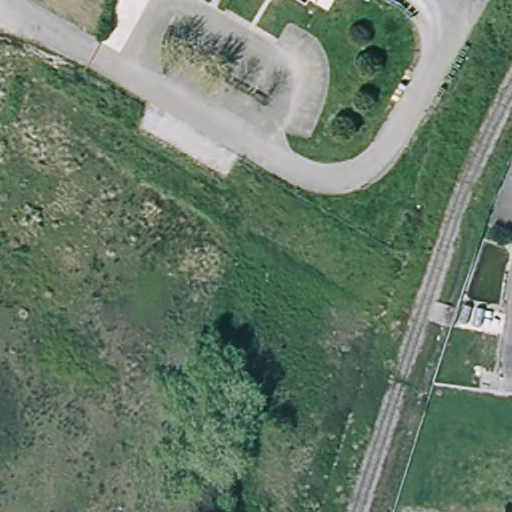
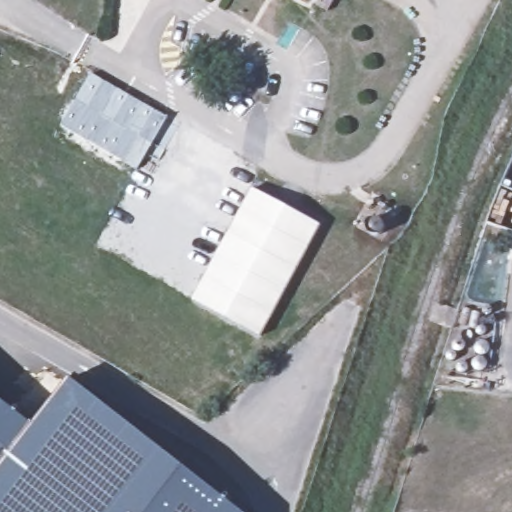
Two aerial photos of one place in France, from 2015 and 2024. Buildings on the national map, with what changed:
new [(61,127),(90,76),(167,117),(139,169),(61,127)]
new [(323,225),(262,338),(192,301),(253,189),(323,225)]
new [(0,472),(71,381),(242,512),(0,512),(0,472)]
new [(34,428),(0,472),(0,399),(35,427),(34,428)]

